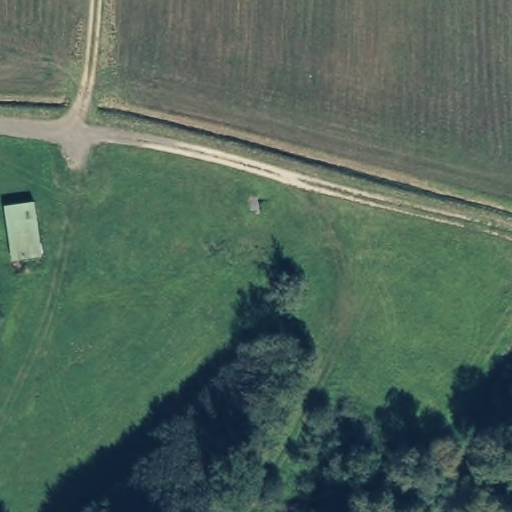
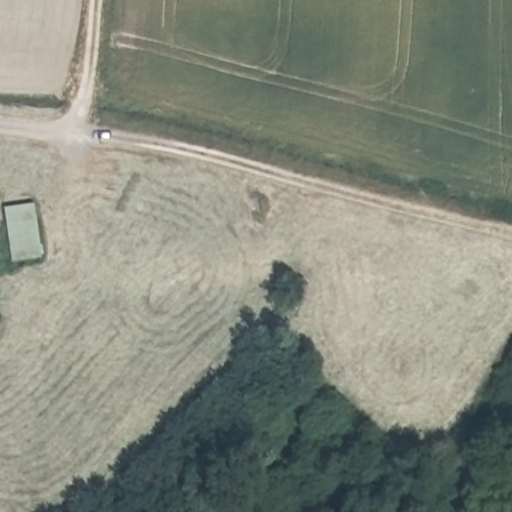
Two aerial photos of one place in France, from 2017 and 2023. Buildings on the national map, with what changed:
unchanged [(34,204),(42,258),(10,262),(2,206),(34,204)]

